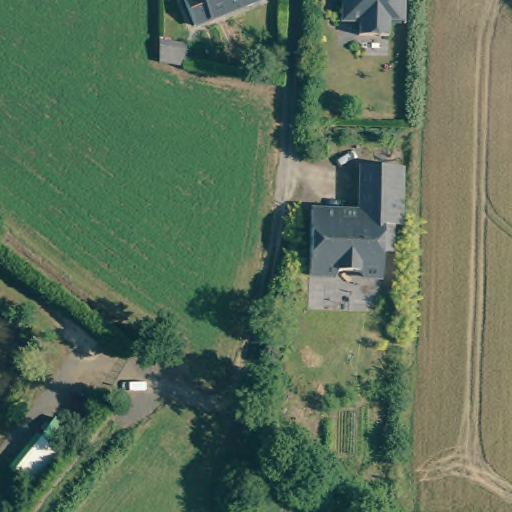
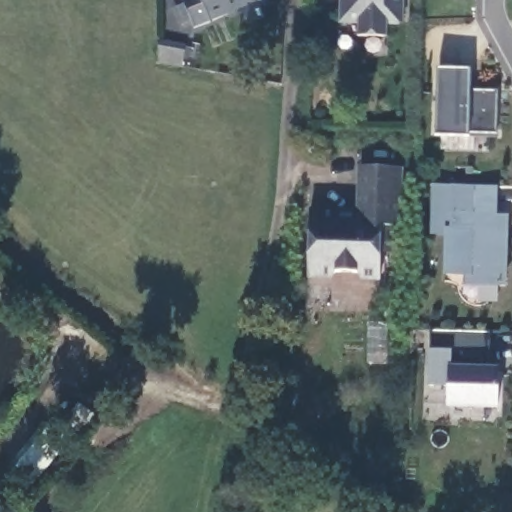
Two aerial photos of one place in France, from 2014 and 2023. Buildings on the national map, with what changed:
unchanged [(192,0),(252,0),(200,20),(192,0)]
unchanged [(385,20),(384,36),(354,35),(354,20),(340,19),(341,0),(401,0),(401,21),(395,20),(385,20)]
unchanged [(153,61),(154,41),(182,45),(179,66),(153,61)]
new [(497,138),(472,138),(469,138),(437,138),(439,69),(471,69),(471,91),(498,91),(497,138)]
unchanged [(377,274),(359,273),(352,268),(334,267),(327,274),(305,273),(306,206),(342,207),(356,207),(357,161),(389,161),(393,161),(392,219),(387,219),(387,249),(378,248),(377,274)]
new [(498,214),(509,215),(507,288),(464,286),(464,275),(445,275),(446,236),(431,237),(432,184),(498,186),(498,214)]
new [(488,367),(500,367),(500,409),(448,407),(449,389),(429,387),(431,349),(432,330),(490,332),(488,367)]

